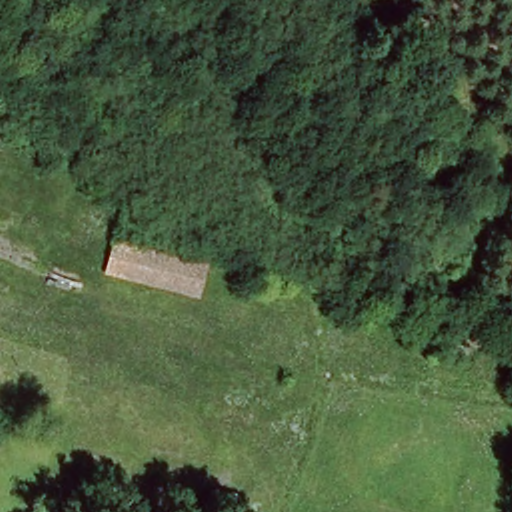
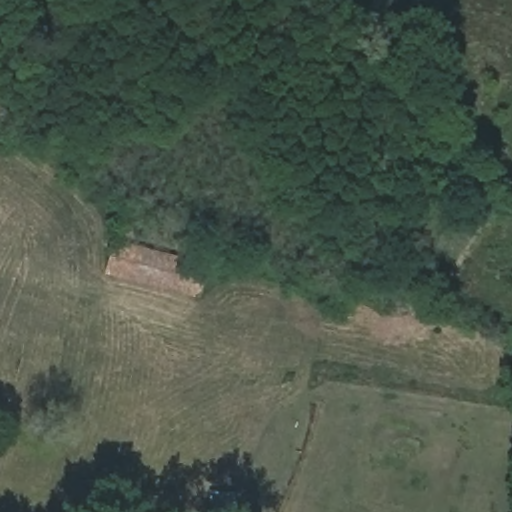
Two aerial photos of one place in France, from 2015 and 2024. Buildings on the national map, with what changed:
unchanged [(202,265),(199,292),(110,272),(116,246),(202,265)]
unchanged [(211,467),(209,506),(188,503),(190,466),(211,467)]

